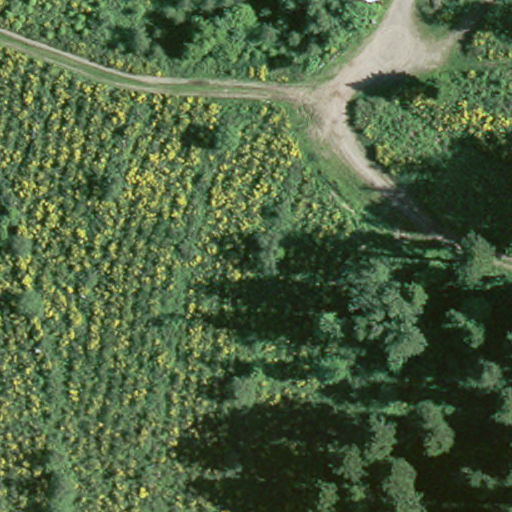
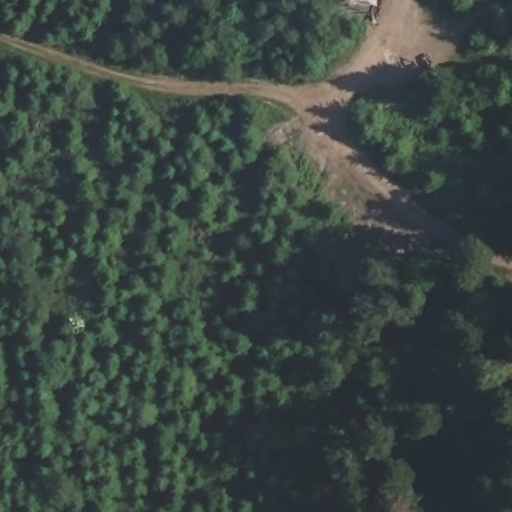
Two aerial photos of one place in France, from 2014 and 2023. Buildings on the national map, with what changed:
unchanged [(195,133),(192,106),(211,105),(211,131),(195,133)]

